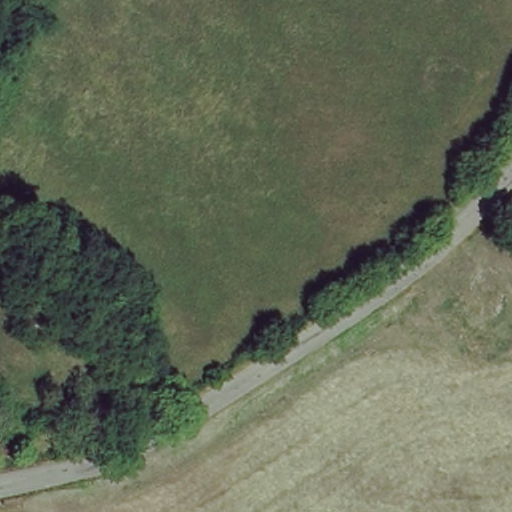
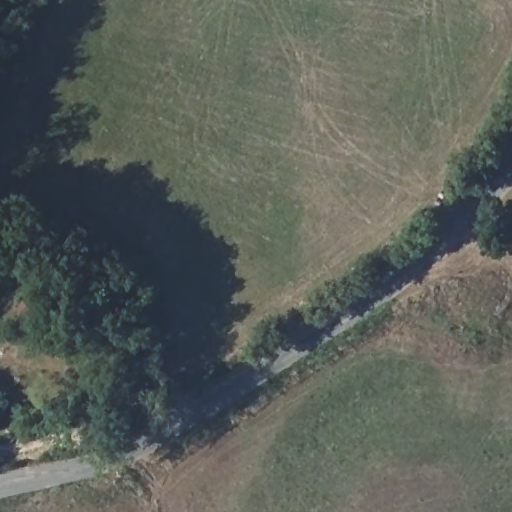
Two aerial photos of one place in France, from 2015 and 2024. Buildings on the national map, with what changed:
unchanged [(37,325),(21,319),(28,305),(42,311),(37,325)]

